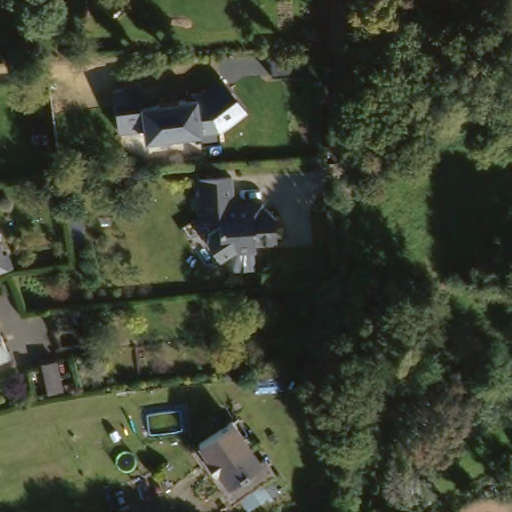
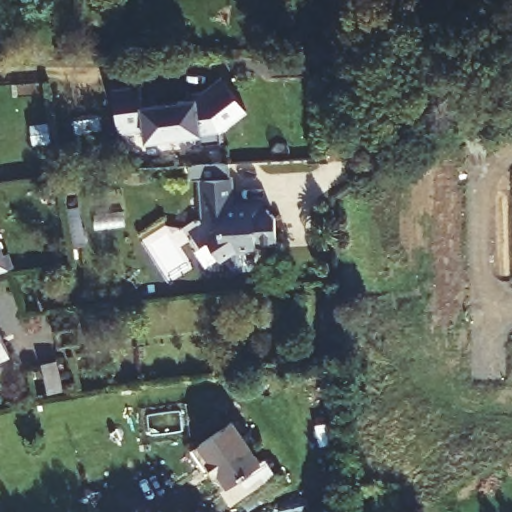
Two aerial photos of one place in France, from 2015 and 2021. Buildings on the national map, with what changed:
unchanged [(242,108),(218,129),(219,139),(200,141),(197,132),(145,139),(142,125),(118,127),(112,86),(138,82),(144,104),(192,97),(217,75),(242,108)]
unchanged [(204,233),(214,223),(214,214),(197,214),(194,174),(225,174),(227,202),(241,201),(247,206),(257,205),(265,213),(267,227),(267,239),(248,239),(249,247),(227,247),(215,253),(205,234),(204,233)]
unchanged [(14,258),(0,262),(0,214),(9,242),(14,258)]
unchanged [(18,354),(0,360),(0,312),(2,311),(18,354)]
unchanged [(232,415),(261,456),(266,452),(277,468),(244,492),(234,478),(232,479),(221,464),(219,466),(210,454),(212,452),(202,438),(232,415)]

